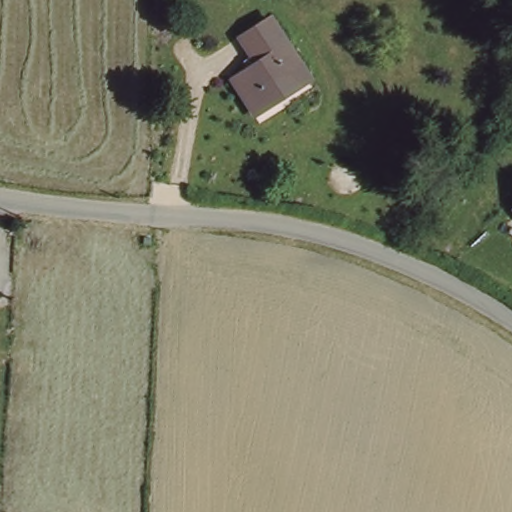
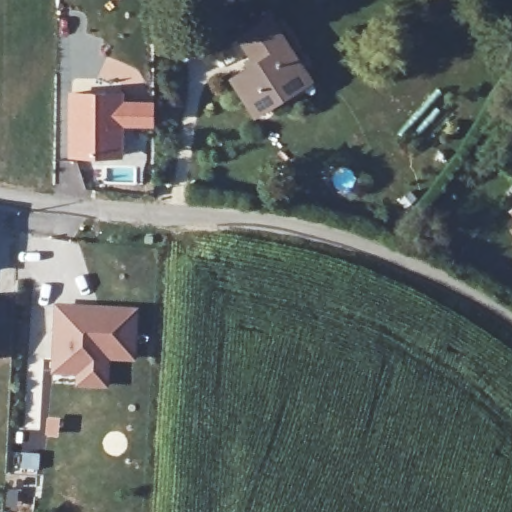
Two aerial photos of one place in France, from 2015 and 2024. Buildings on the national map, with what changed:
unchanged [(315,82),(253,124),(234,92),(257,76),(240,46),(276,22),(315,82)]
new [(154,125),(124,127),(123,156),(69,157),(68,91),(125,91),(124,100),(155,100),(154,125)]
new [(50,379),(53,314),(84,315),(95,316),(131,318),(129,365),(103,364),(102,374),(102,393),(75,391),(75,380),(50,379)]

